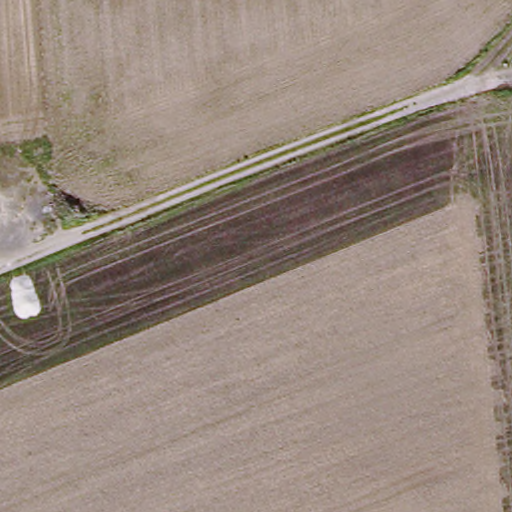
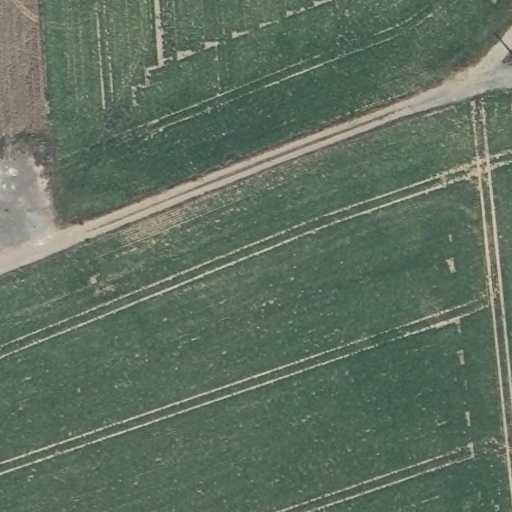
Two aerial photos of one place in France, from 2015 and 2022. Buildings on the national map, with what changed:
[]

